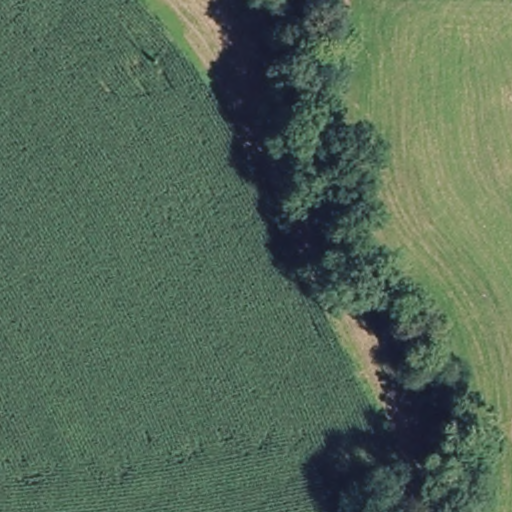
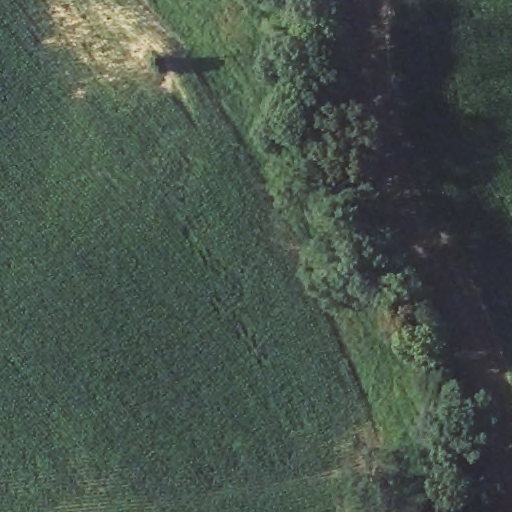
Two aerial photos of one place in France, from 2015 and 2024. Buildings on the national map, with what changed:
[]

